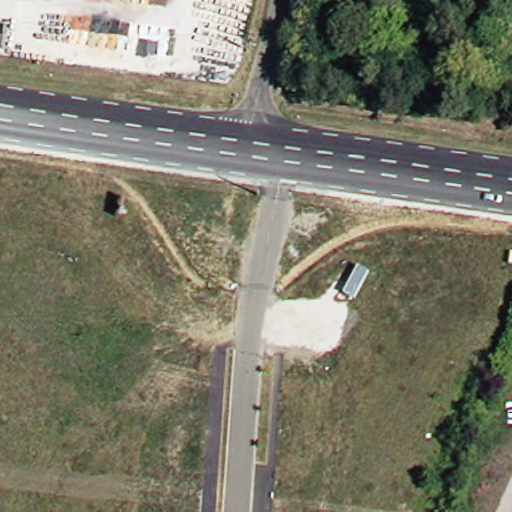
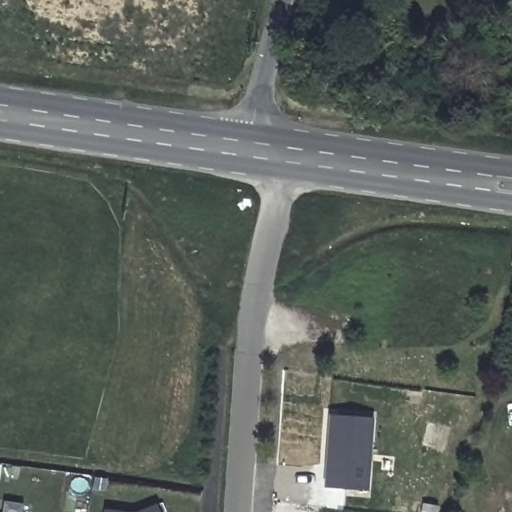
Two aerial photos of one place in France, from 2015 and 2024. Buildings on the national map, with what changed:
new [(329,443),(330,415),(373,418),(368,490),(325,487),(328,454),(329,443)]
new [(133,511),(156,502),(160,512),(104,512),(104,508),(133,511)]

